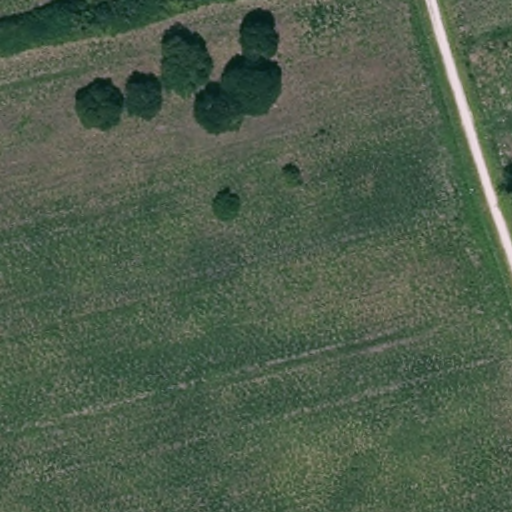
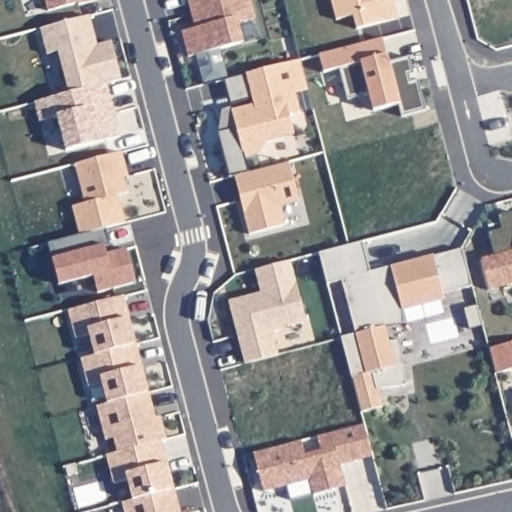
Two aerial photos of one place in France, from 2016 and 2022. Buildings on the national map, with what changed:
new [(76,6),(76,4),(46,12),(43,0),(99,0),(76,6)]
new [(182,31),(194,29),(187,0),(249,0),(254,17),(237,22),(243,41),(188,55),(182,31)]
new [(398,17),(357,28),(353,15),(335,19),(330,0),(393,0),(398,17)]
new [(87,17),(92,36),(86,37),(89,48),(109,43),(119,81),(105,85),(68,95),(56,54),(45,56),(39,30),(87,17)]
new [(381,39),(385,55),(387,64),(408,58),(413,75),(408,76),(409,83),(417,81),(424,111),(400,118),(397,105),(372,112),(368,95),(347,101),(338,70),(322,74),(317,56),(353,46),(381,39)]
new [(224,130),(227,111),(254,104),(246,75),(285,65),(299,112),(288,115),(292,134),(264,140),(259,151),(261,160),(226,169),(215,131),(224,130)]
new [(68,95),(105,85),(119,138),(64,152),(55,118),(38,123),(33,104),(68,95)]
new [(126,175),(123,176),(126,192),(117,195),(124,223),(79,234),(72,206),(84,203),(74,164),(121,151),(126,175)]
new [(298,203),(279,208),(284,226),(249,236),(239,200),(233,177),(238,176),(287,163),(298,203)]
new [(493,258),(487,235),(501,231),(497,217),(512,214),(512,285),(488,292),(479,261),(493,258)]
new [(104,230),(109,247),(104,249),(105,256),(125,250),(134,284),(96,294),(92,278),(58,287),(46,245),(104,230)]
new [(369,270),(389,266),(389,269),(433,257),(433,258),(462,251),(472,287),(442,295),(444,300),(441,301),(442,308),(404,318),(406,325),(384,328),(388,343),(399,341),(406,387),(377,390),(382,408),(360,414),(340,339),(355,335),(341,282),(326,286),(318,255),(362,243),(369,270)]
new [(260,294),(254,271),(289,262),(305,323),(271,332),(278,357),(244,365),(228,302),(260,294)]
new [(154,419),(159,418),(166,441),(117,454),(114,440),(105,442),(96,408),(106,405),(101,385),(88,388),(80,360),(94,357),(89,336),(75,340),(68,312),(123,297),(127,315),(135,346),(140,363),(148,395),(154,419)]
new [(494,375),(488,350),(512,343),(512,370),(494,375)]
new [(336,490),(313,496),(309,481),(263,493),(253,455),(300,442),(304,456),(320,452),(317,438),(363,425),(372,457),(340,466),(344,480),(346,487),(336,490)]
new [(164,463),(170,492),(131,502),(126,480),(113,483),(105,456),(117,454),(162,442),(164,463)]
new [(179,512),(124,512),(122,505),(174,491),(179,512)]

